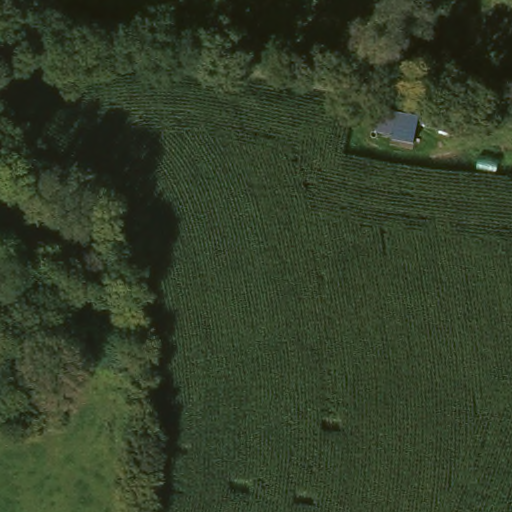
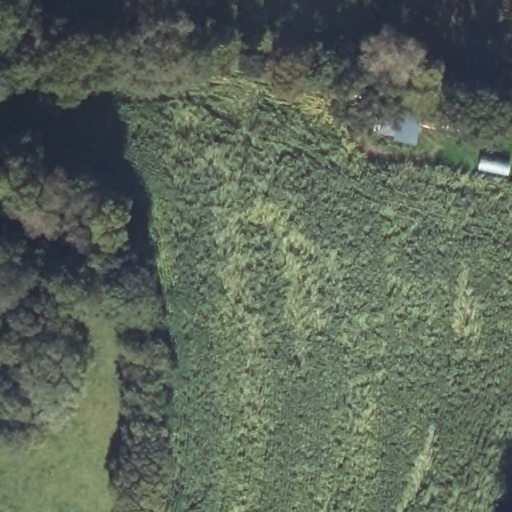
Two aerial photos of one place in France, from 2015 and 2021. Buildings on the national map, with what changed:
unchanged [(416,143),(391,139),(391,135),(376,133),(381,109),(419,116),(416,143)]

